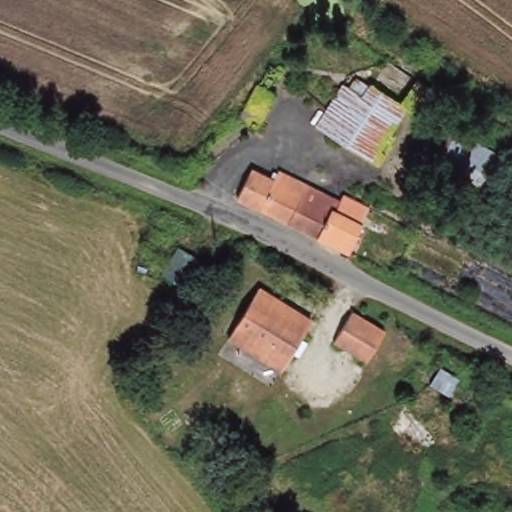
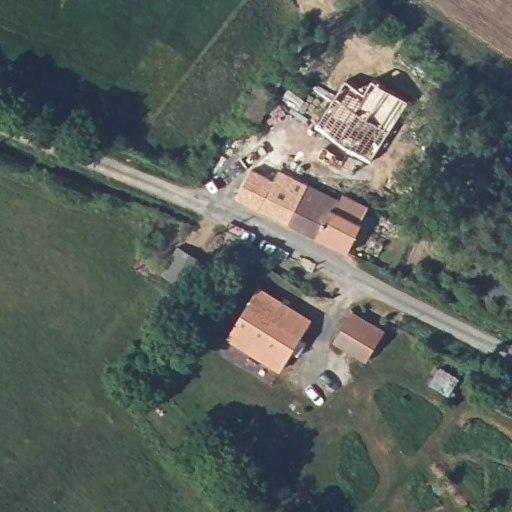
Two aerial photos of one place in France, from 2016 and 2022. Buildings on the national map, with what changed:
unchanged [(388,60),(444,96),(427,120),(410,109),(372,83),(388,60)]
unchanged [(383,153),(389,156),(383,166),(378,164),(377,166),(320,128),(349,86),(356,90),(362,80),(371,85),(372,83),(410,109),(383,153)]
unchanged [(512,135),(512,136),(479,194),(434,170),(468,110),(512,135)]
unchanged [(254,168),(273,177),(280,167),(311,183),(290,223),(237,198),(254,168)]
unchanged [(340,198),(344,189),(366,200),(358,218),(363,221),(347,250),(290,223),(311,183),(340,198)]
unchanged [(235,334),(265,290),(309,320),(313,323),(284,366),(280,364),(235,334)]
unchanged [(370,361),(337,339),(356,310),(389,330),(370,361)]

